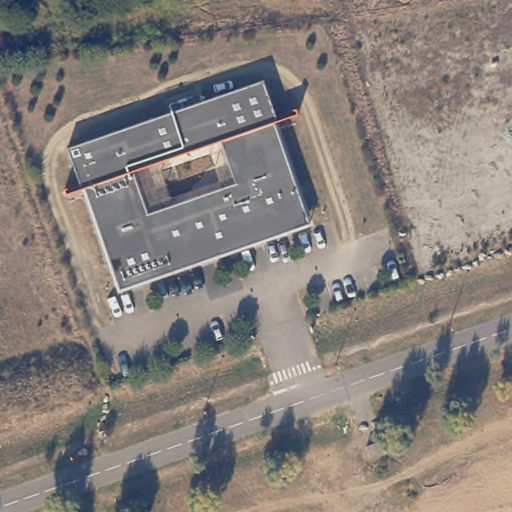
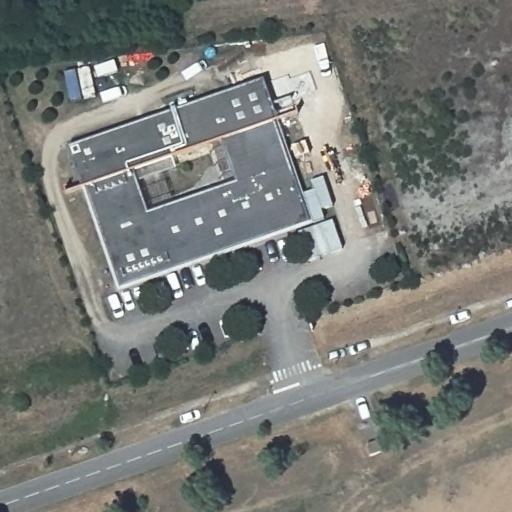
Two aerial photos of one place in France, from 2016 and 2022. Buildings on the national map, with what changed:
unchanged [(265,80),(312,222),(121,290),(67,147),(265,80)]

